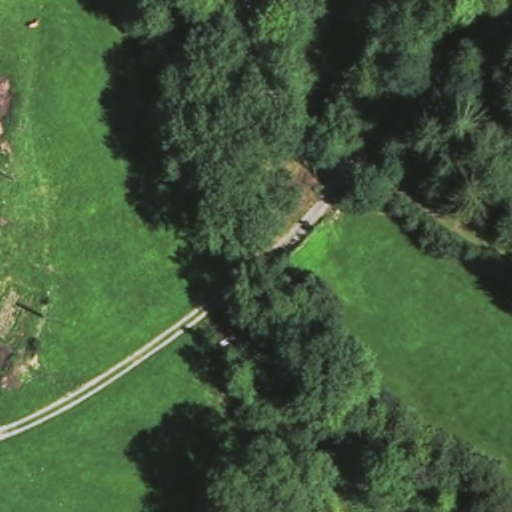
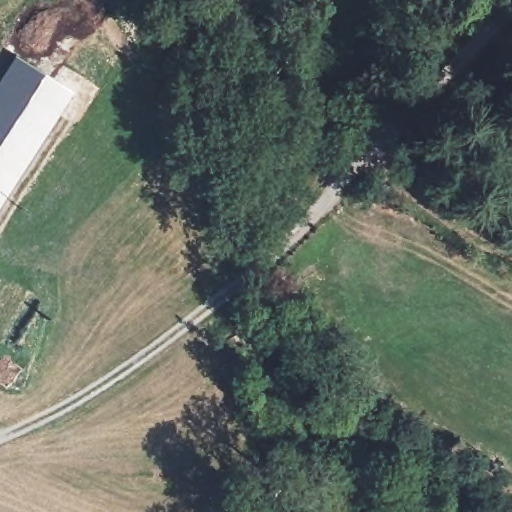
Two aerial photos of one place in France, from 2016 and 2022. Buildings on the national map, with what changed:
new [(17,59),(72,93),(0,210),(0,87),(17,59)]
new [(289,488),(314,512),(263,512),(289,488)]
demolished [(312,512),(279,512),(300,495),(312,512)]

